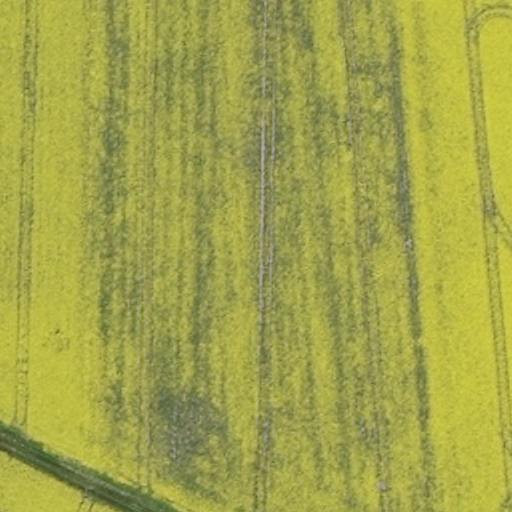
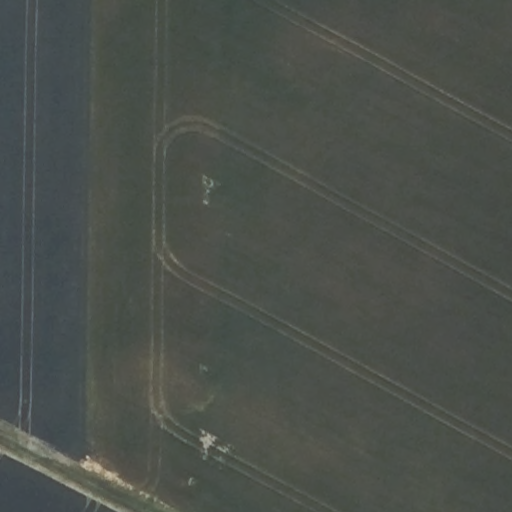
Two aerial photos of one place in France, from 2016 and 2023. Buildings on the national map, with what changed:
[]

